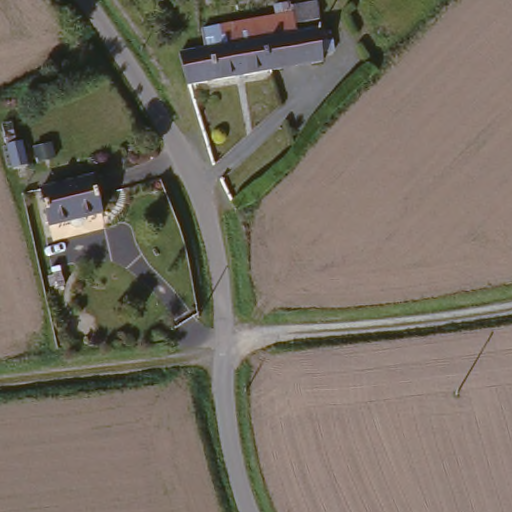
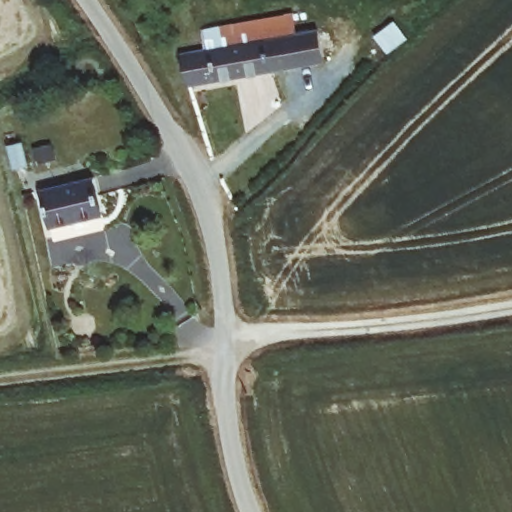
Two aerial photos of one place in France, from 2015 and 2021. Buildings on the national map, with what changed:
unchanged [(187,84),(182,56),(209,52),(207,29),(278,17),(302,20),(305,34),(323,31),(327,62),(187,84)]
unchanged [(96,209),(47,230),(35,197),(80,175),(96,209)]

